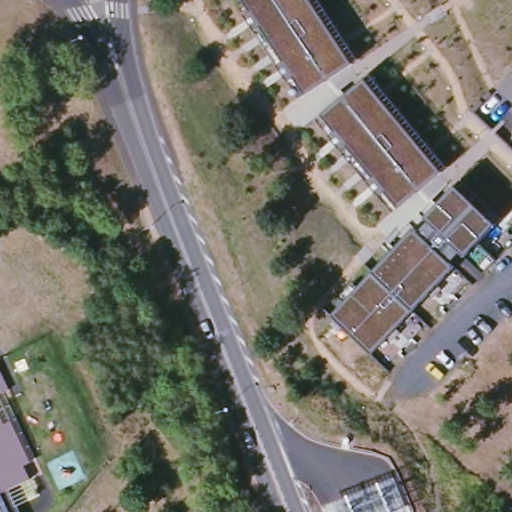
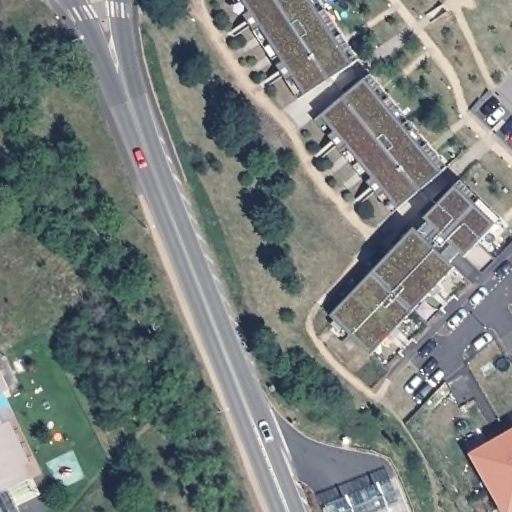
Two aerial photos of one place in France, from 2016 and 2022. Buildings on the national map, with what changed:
unchanged [(236,0),(319,0),(359,63),(301,98),(236,0)]
unchanged [(394,214),(319,123),(373,76),(449,166),(394,214)]
unchanged [(498,225),(373,357),(331,319),(459,187),(498,225)]
unchanged [(10,392),(0,396),(0,371),(10,392)]
unchanged [(5,426),(14,420),(34,462),(26,465),(33,480),(9,490),(20,512),(0,512),(0,415),(5,426)]
new [(512,512),(507,512),(474,455),(512,432),(512,512)]

